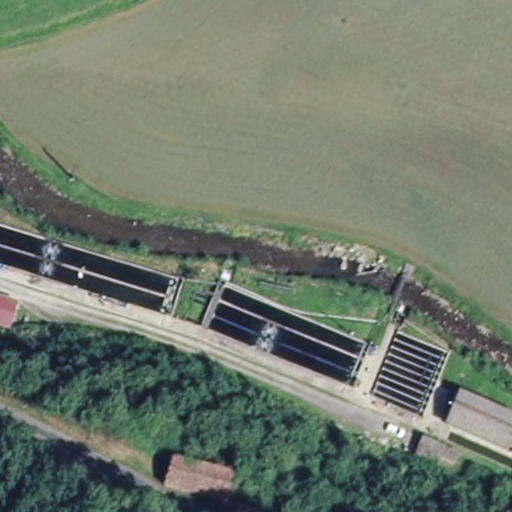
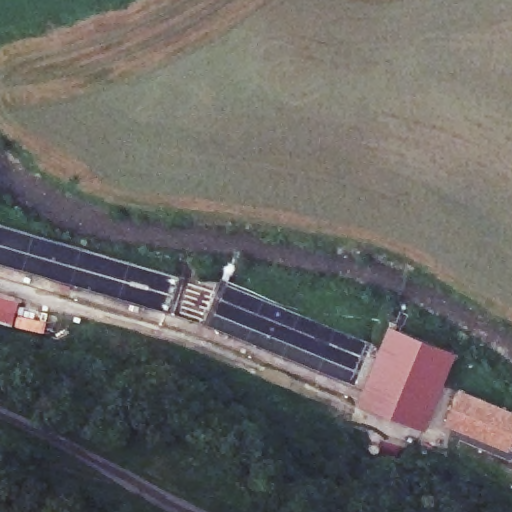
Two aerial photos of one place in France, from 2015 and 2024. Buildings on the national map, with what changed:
unchanged [(10,320),(7,331),(0,330),(0,306),(14,310),(10,320)]
new [(390,325),(458,353),(423,435),(356,408),(390,325)]
unchanged [(463,391),(512,410),(512,437),(509,443),(449,419),(463,391)]
unchanged [(423,450),(427,442),(430,436),(467,451),(462,461),(448,453),(444,460),(423,450)]
unchanged [(167,464),(178,466),(232,480),(227,501),(227,505),(161,489),(167,464)]

